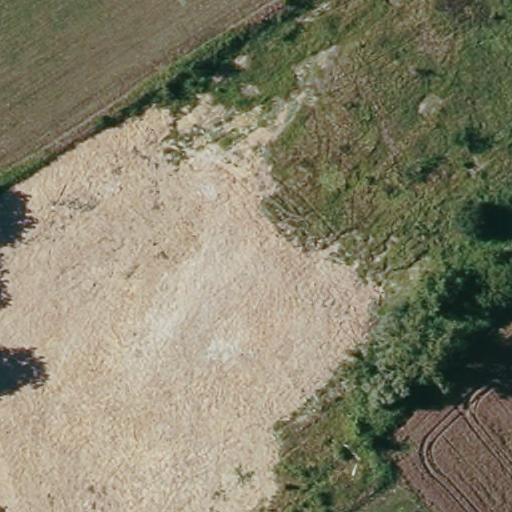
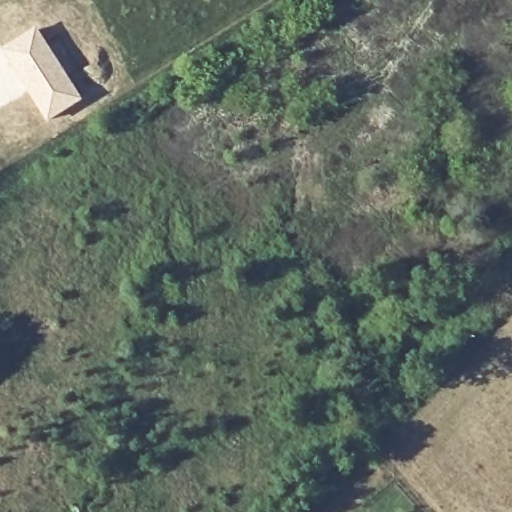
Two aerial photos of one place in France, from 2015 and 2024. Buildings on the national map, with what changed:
new [(36,26),(82,100),(47,123),(0,53),(0,50),(36,26)]

